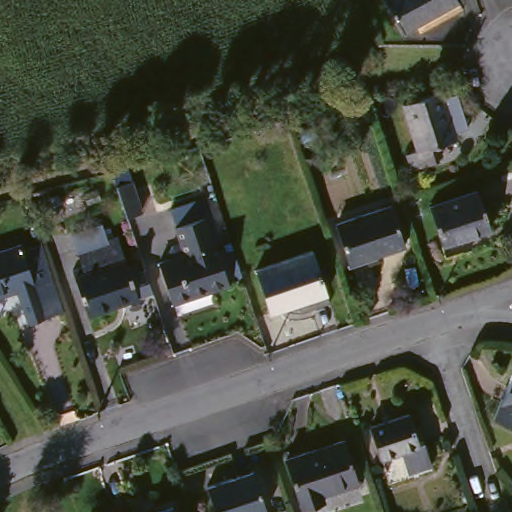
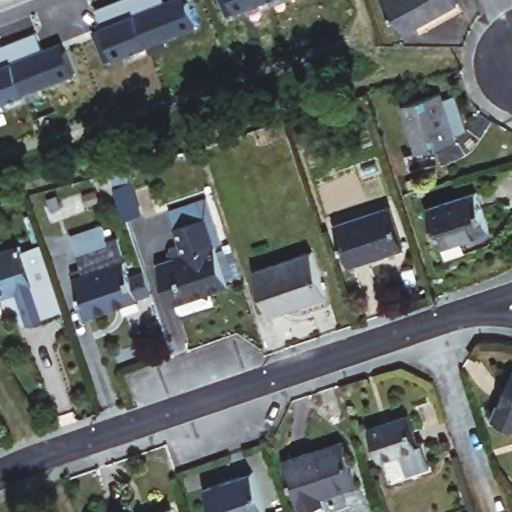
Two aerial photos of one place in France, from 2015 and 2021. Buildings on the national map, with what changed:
new [(116,0),(160,0),(161,2),(165,0),(182,0),(183,2),(192,25),(101,60),(92,37),(90,30),(99,26),(92,9),(116,0)]
new [(217,0),(257,0),(222,13),(217,0)]
unchanged [(384,0),(454,0),(456,4),(401,33),(384,0)]
new [(32,32),(39,49),(45,47),(59,41),(61,49),(70,72),(0,100),(0,45),(32,32)]
unchanged [(450,142),(428,149),(433,164),(404,173),(399,156),(410,152),(395,107),(435,94),(450,142)]
unchanged [(114,188),(129,183),(146,233),(131,238),(114,188)]
unchanged [(426,209),(476,192),(490,232),(439,249),(426,209)]
unchanged [(174,306),(161,265),(187,256),(172,211),(210,198),(225,243),(219,245),(233,287),(174,306)]
unchanged [(334,227),(389,208),(403,248),(348,267),(334,227)]
unchanged [(73,275),(84,272),(74,242),(106,231),(111,247),(121,244),(142,305),(90,323),(73,275)]
unchanged [(56,315),(22,327),(10,293),(0,297),(0,252),(13,247),(15,253),(33,247),(56,315)]
unchanged [(252,272),(312,252),(327,296),(267,316),(252,272)]
unchanged [(512,433),(486,422),(507,371),(512,373),(512,433)]
unchanged [(367,424),(406,410),(417,440),(422,439),(430,462),(407,470),(400,450),(378,457),(367,424)]
unchanged [(357,485),(321,497),(323,504),(299,512),(282,462),(342,442),(357,485)]
unchanged [(260,512),(206,512),(198,488),(246,472),(260,512)]
unchanged [(171,512),(163,512),(170,509),(171,512)]

